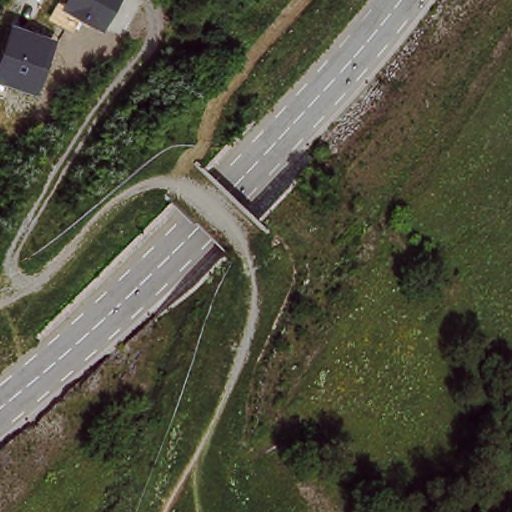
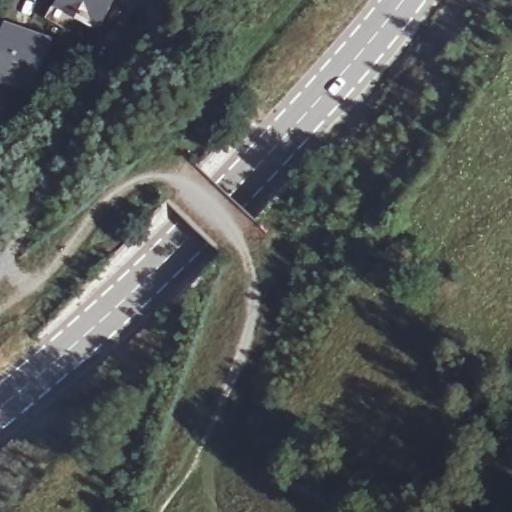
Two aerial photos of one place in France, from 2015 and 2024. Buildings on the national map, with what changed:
unchanged [(102,31),(59,7),(63,0),(118,0),(102,31)]
unchanged [(36,94),(0,81),(0,50),(9,22),(56,39),(36,94)]

